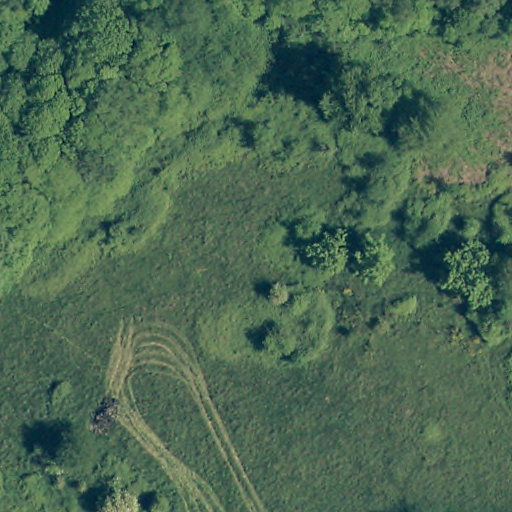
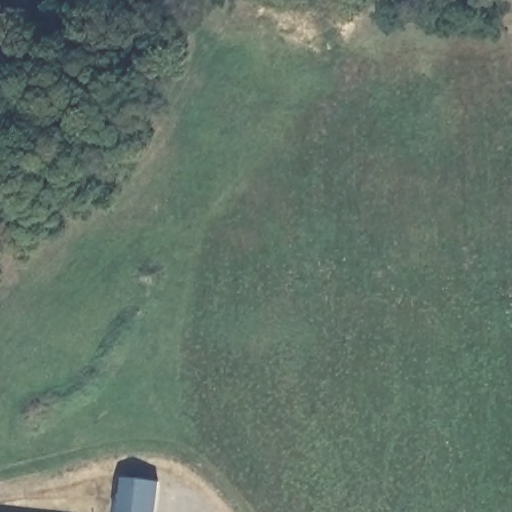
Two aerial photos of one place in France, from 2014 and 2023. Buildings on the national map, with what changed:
new [(158,481),(155,512),(118,512),(122,477),(158,481)]

